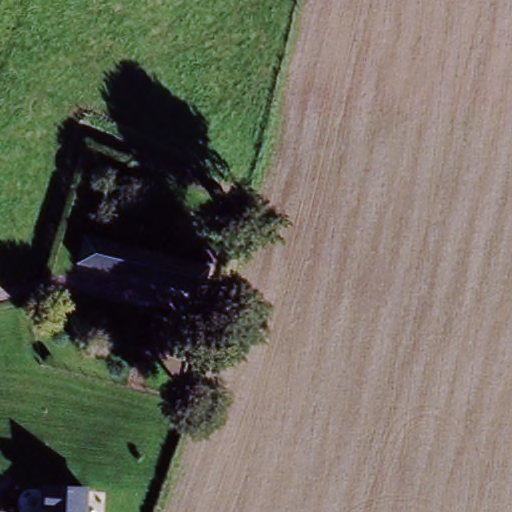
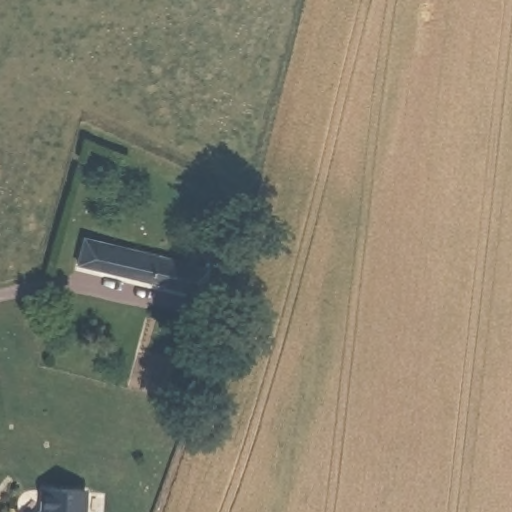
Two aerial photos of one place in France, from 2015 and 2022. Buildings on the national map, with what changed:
unchanged [(87,272),(94,245),(220,276),(215,302),(87,272)]
unchanged [(89,498),(86,512),(45,512),(47,492),(89,498)]

